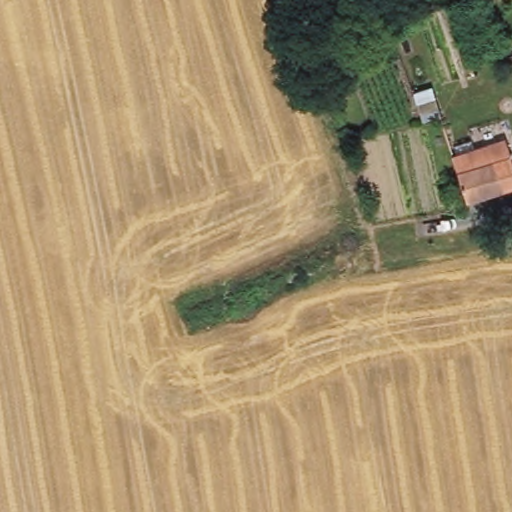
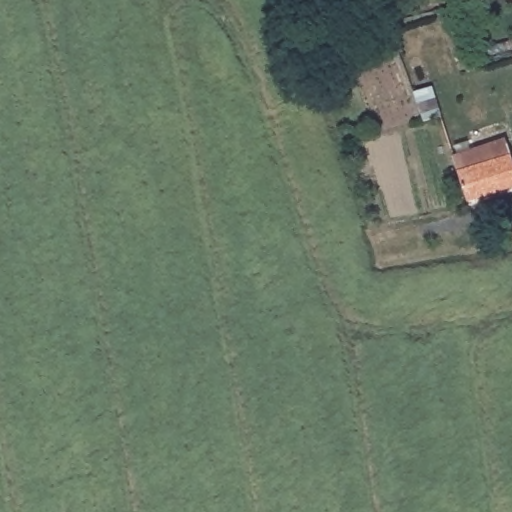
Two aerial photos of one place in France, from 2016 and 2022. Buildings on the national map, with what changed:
unchanged [(512,184),(504,187),(467,196),(455,157),(462,155),(480,148),(509,139),(512,149),(512,184)]

